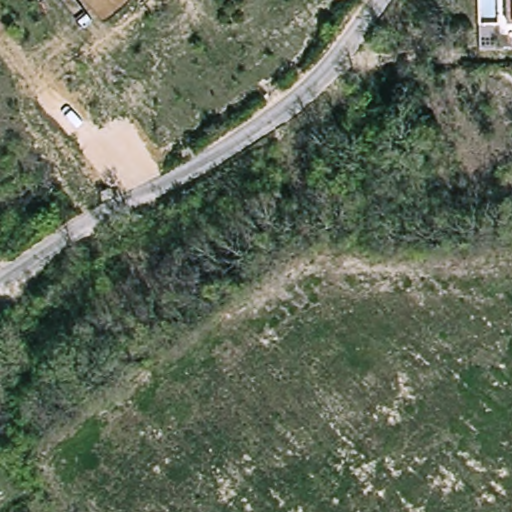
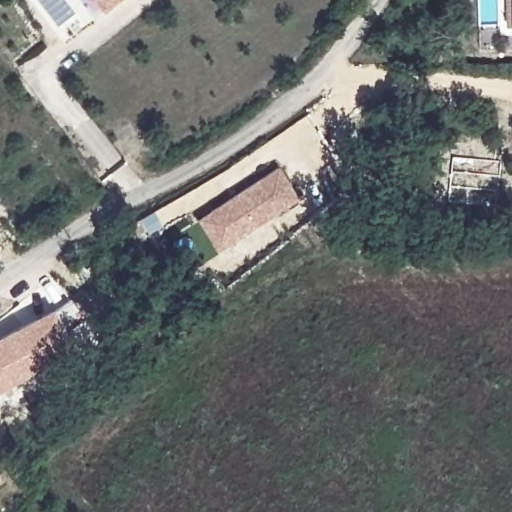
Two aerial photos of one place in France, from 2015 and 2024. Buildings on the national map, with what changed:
unchanged [(94,0),(117,0),(111,5),(103,11),(94,0)]
unchanged [(509,0),(512,0),(512,22),(508,22),(509,0)]
new [(298,201),(217,253),(196,222),(275,168),(298,201)]
new [(52,310),(74,351),(0,392),(0,338),(52,310)]

